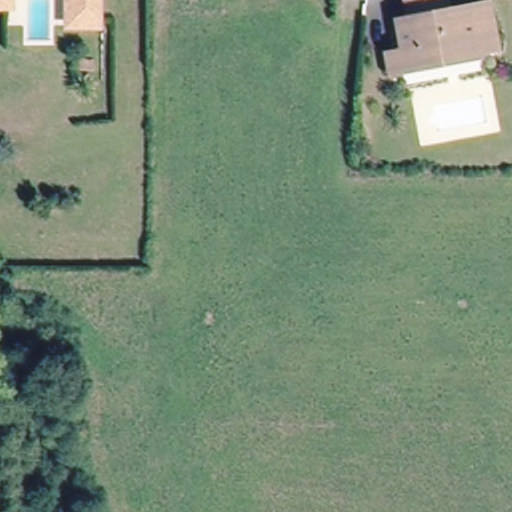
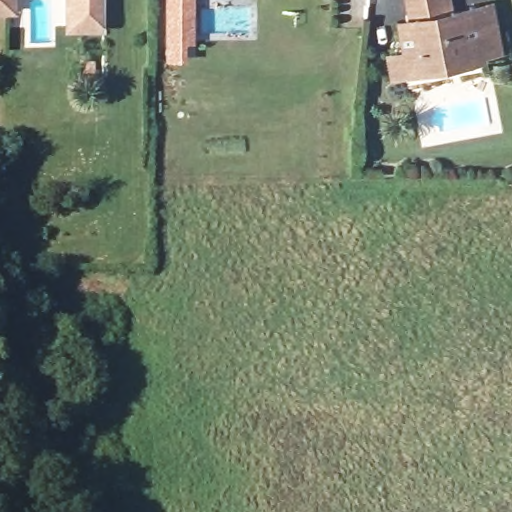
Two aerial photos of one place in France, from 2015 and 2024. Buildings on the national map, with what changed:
unchanged [(4,3),(0,3),(0,0),(4,0),(4,3)]
unchanged [(101,27),(67,27),(66,0),(101,0),(101,11),(101,27)]
new [(178,59),(163,59),(164,0),(194,0),(193,41),(178,41),(178,59)]
unchanged [(409,59),(404,32),(420,29),(419,21),(415,21),(412,0),(447,0),(450,21),(495,13),(503,54),(484,57),(485,60),(466,64),(466,67),(428,73),(412,76),(409,59)]

